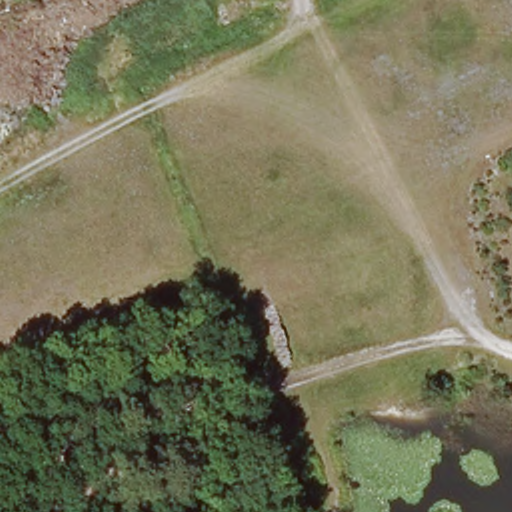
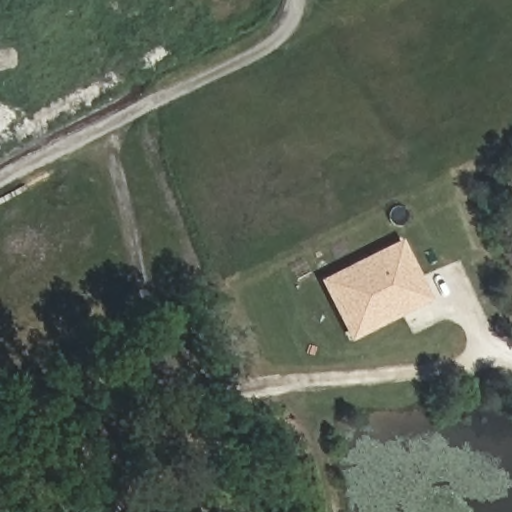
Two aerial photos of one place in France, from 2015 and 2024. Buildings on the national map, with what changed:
new [(402,238),(433,299),(350,340),(319,279),(402,238)]

